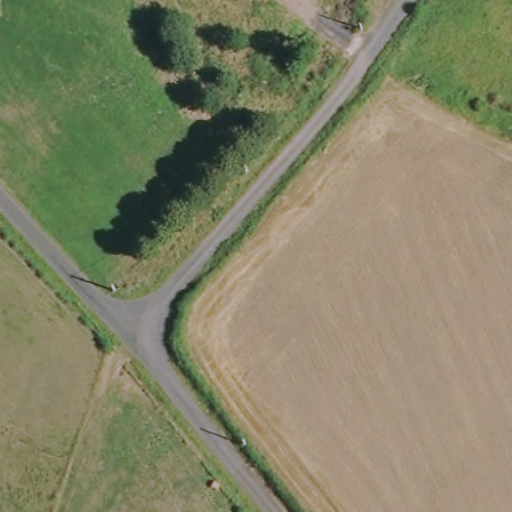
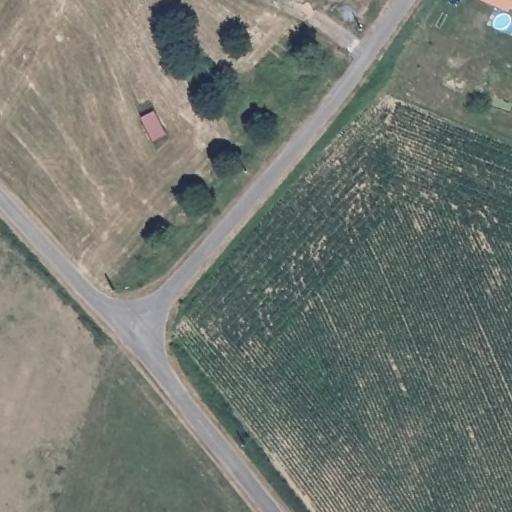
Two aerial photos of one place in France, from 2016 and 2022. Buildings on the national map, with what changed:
new [(482,0),(512,0),(512,9),(511,8),(510,11),(482,0)]

